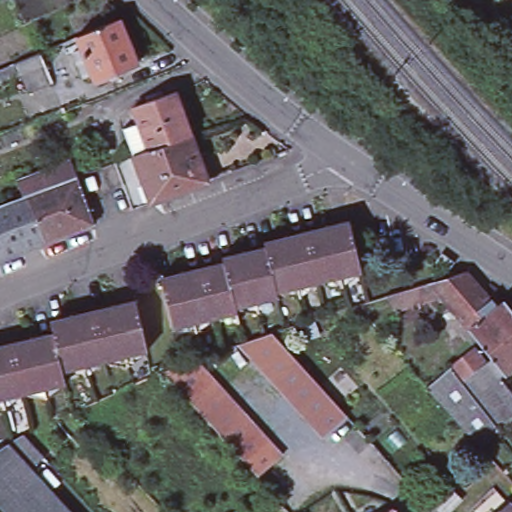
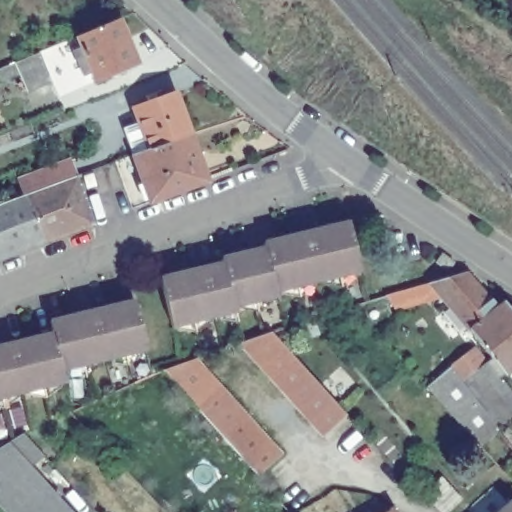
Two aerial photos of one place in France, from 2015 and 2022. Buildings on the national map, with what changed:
unchanged [(74,54),(82,51),(77,39),(80,37),(118,22),(138,67),(97,84),(93,74),(84,78),(74,54)]
unchanged [(35,56),(44,52),(55,77),(30,88),(24,75),(5,82),(0,71),(35,56)]
unchanged [(134,158),(124,130),(140,124),(134,109),(176,94),(192,137),(208,182),(150,204),(134,158)]
unchanged [(72,154),(95,139),(103,154),(82,167),(72,154)]
unchanged [(44,173),(72,162),(78,179),(95,226),(27,250),(0,261),(0,208),(4,207),(50,190),(44,173)]
unchanged [(351,222),(363,269),(350,272),(351,278),(343,283),(334,282),(332,277),(307,282),(309,288),(301,294),(292,293),(290,287),(277,290),(277,294),(264,297),(265,303),(259,310),(249,308),(247,302),(235,304),(240,320),(230,318),(228,312),(202,318),(204,325),(197,330),(187,330),(185,322),(173,326),(160,277),(223,262),(222,257),(265,247),(265,242),(351,222)]
unchanged [(452,260),(457,263),(450,273),(439,265),(445,256),(452,260)]
unchanged [(497,311),(470,332),(432,283),(445,280),(466,273),(497,311)]
unchanged [(130,301),(142,347),(130,351),(131,357),(124,363),(115,362),(113,355),(88,361),(90,367),(82,372),(73,371),(71,365),(57,368),(60,381),(47,383),(49,390),(42,396),(32,393),(31,387),(5,393),(7,401),(0,406),(0,345),(49,333),(45,321),(130,301)]
unchanged [(497,311),(505,304),(512,312),(512,370),(505,376),(482,347),(470,332),(497,311)]
unchanged [(272,333),(281,342),(347,417),(324,438),(240,345),(272,333)]
unchanged [(512,422),(502,431),(499,427),(477,445),(427,387),(451,368),(475,352),(485,365),(507,391),(512,387),(512,422)]
unchanged [(195,356),(282,451),(258,472),(242,454),(162,367),(195,356)]
unchanged [(23,436),(33,432),(47,446),(39,453),(44,458),(30,471),(69,512),(3,512),(0,509),(0,450),(23,436)]
unchanged [(464,502),(453,512),(440,512),(427,498),(425,496),(444,479),(464,502)]
unchanged [(512,512),(503,512),(512,504),(512,512)]
unchanged [(395,512),(390,512),(394,510),(395,512)]

